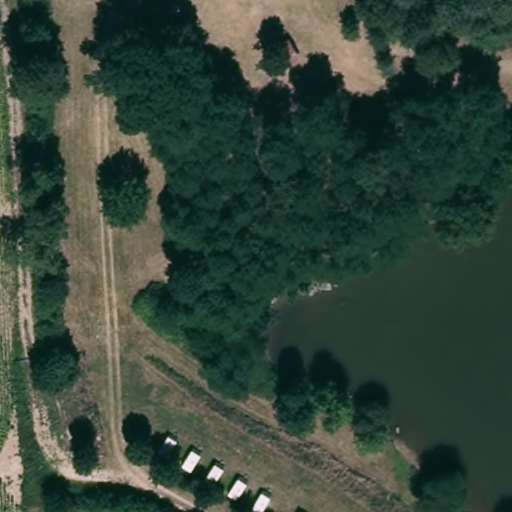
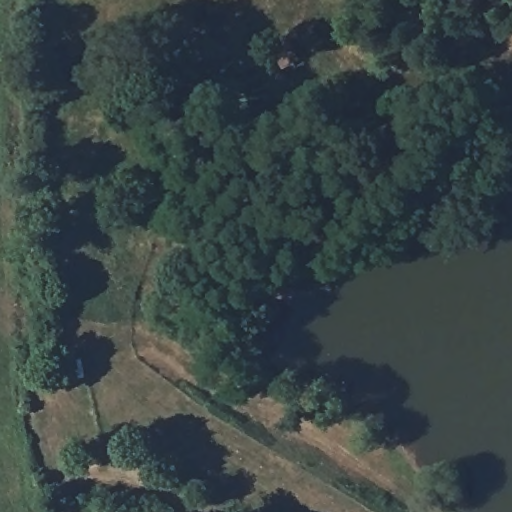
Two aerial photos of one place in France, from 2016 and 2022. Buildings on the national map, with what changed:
unchanged [(291,29),(306,55),(288,69),(267,43),(291,29)]

